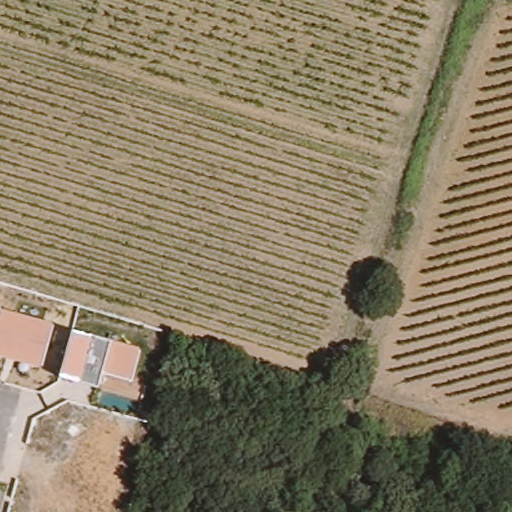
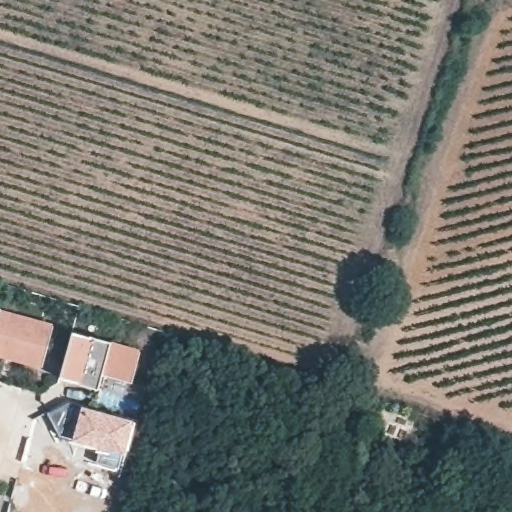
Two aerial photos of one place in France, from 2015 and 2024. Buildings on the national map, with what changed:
unchanged [(53,323),(43,367),(0,356),(0,309),(53,323)]
unchanged [(71,332),(110,343),(139,352),(132,384),(100,376),(97,389),(59,377),(71,332)]
new [(57,434),(45,413),(67,402),(72,402),(79,404),(135,420),(124,455),(92,450),(68,441),(69,439),(57,434)]

